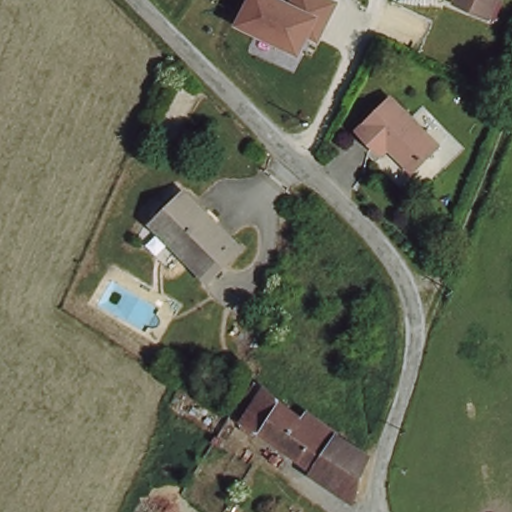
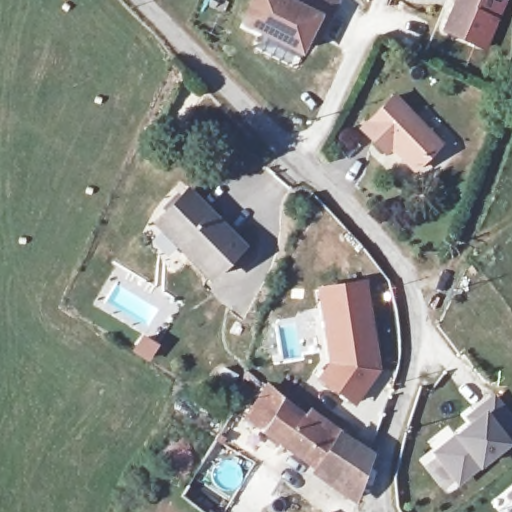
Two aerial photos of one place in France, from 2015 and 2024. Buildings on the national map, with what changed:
unchanged [(338,3),(322,41),(316,39),(305,56),(240,26),(253,0),(332,0),(338,3)]
unchanged [(485,21),(453,5),(455,0),(495,0),(485,21)]
unchanged [(439,150),(412,177),(382,146),(375,153),(360,138),(394,104),(439,150)]
unchanged [(227,237),(238,249),(216,272),(207,282),(177,252),(182,248),(157,222),(183,193),(227,237)]
new [(366,279),(380,371),(354,406),(317,379),(327,362),(317,286),(366,279)]
unchanged [(308,420),(313,411),(372,452),(354,497),(352,501),(353,504),(246,426),(267,391),(308,420)]
new [(495,393),(512,418),(512,430),(504,435),(510,444),(478,468),(457,485),(432,453),(452,435),(468,422),(464,416),(495,393)]
new [(504,493),(512,487),(512,503),(504,493)]

